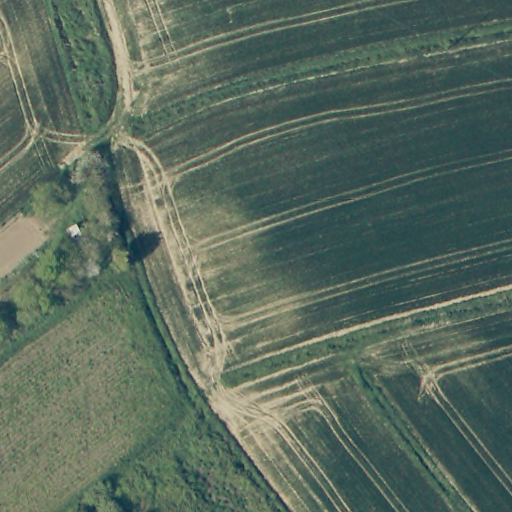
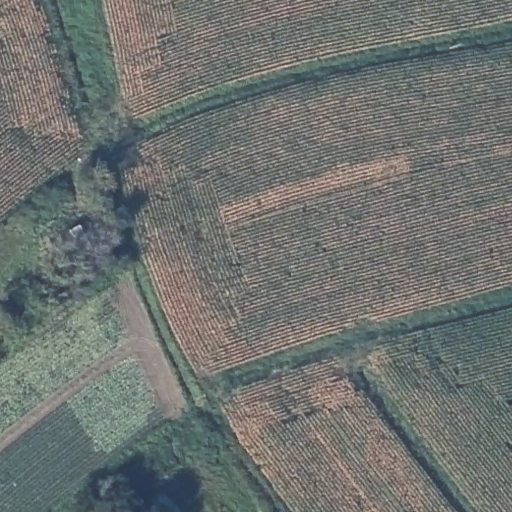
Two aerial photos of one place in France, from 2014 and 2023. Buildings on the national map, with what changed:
[]

